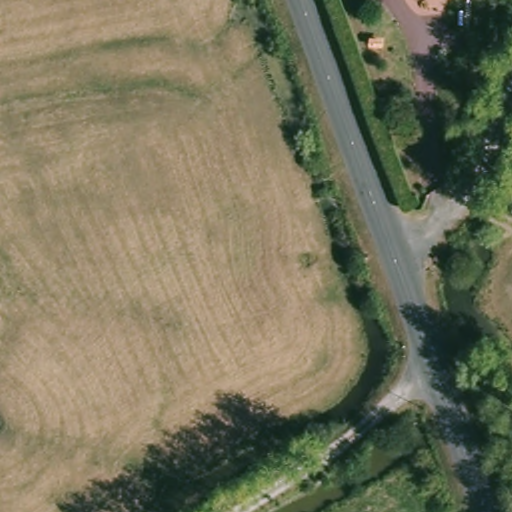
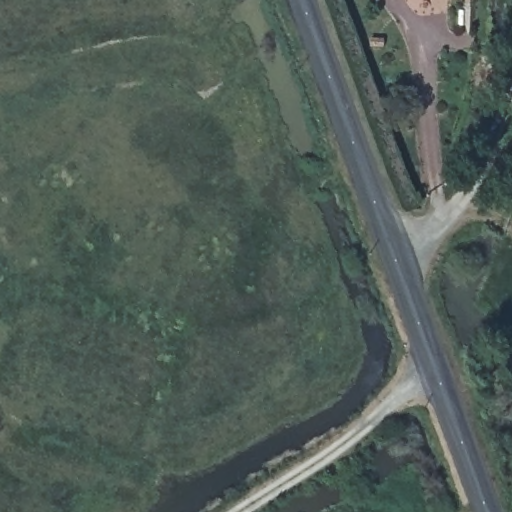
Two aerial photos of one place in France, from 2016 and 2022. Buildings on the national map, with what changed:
[]

